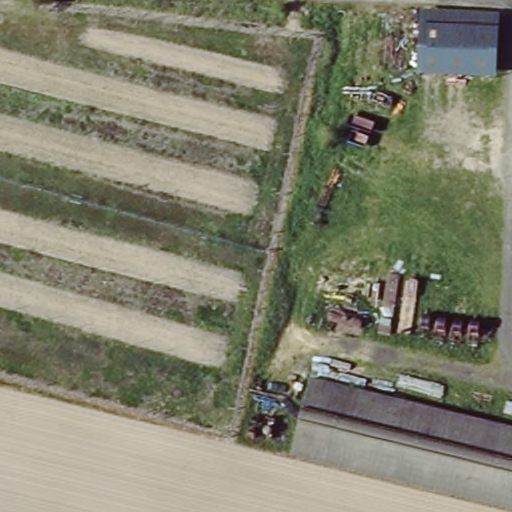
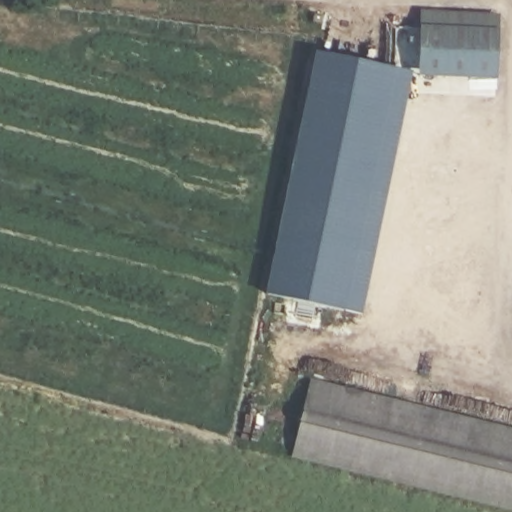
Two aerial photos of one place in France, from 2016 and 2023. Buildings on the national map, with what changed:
unchanged [(500,18),(499,79),(418,77),(419,17),(500,18)]
new [(265,294),(315,52),(412,73),(363,315),(265,294)]
unchanged [(293,458),(310,378),(512,428),(512,510),(293,458)]

